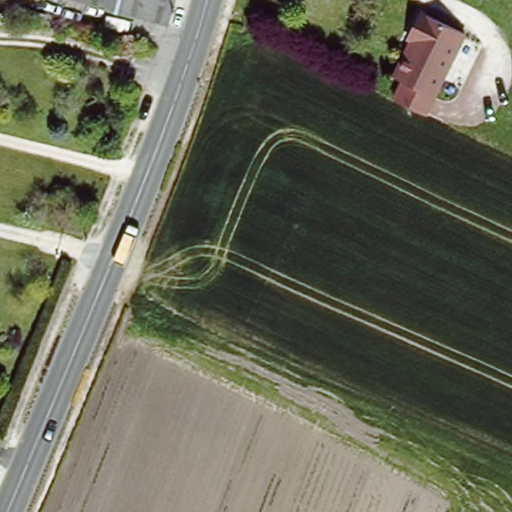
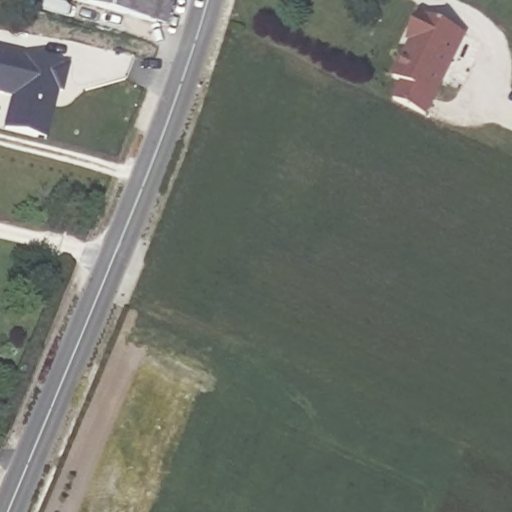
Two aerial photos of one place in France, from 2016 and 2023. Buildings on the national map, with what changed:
unchanged [(66,0),(174,0),(165,27),(66,0)]
unchanged [(405,85),(396,80),(407,55),(410,56),(415,45),(413,44),(409,42),(422,17),(425,19),(465,39),(427,119),(396,104),(405,85)]
new [(70,65),(62,95),(58,94),(47,140),(3,129),(10,97),(0,94),(0,49),(70,65)]

